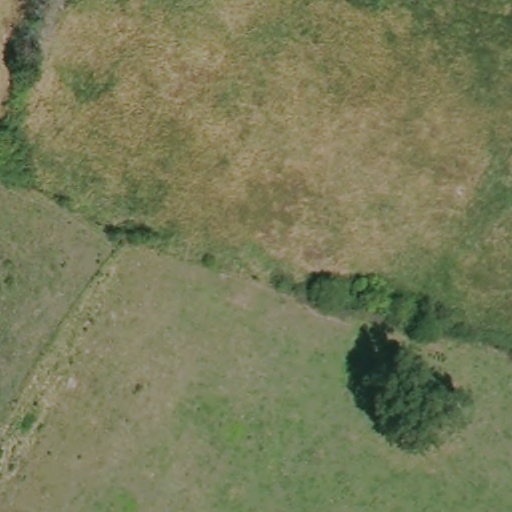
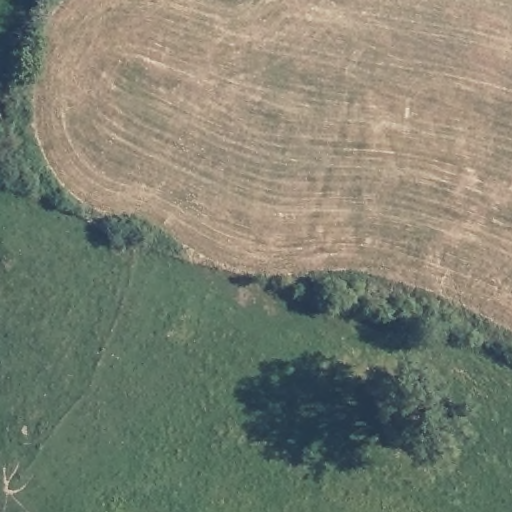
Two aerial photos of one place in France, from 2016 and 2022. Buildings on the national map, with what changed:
[]

